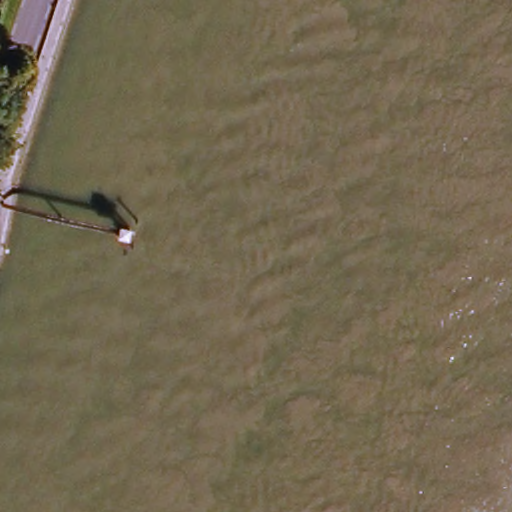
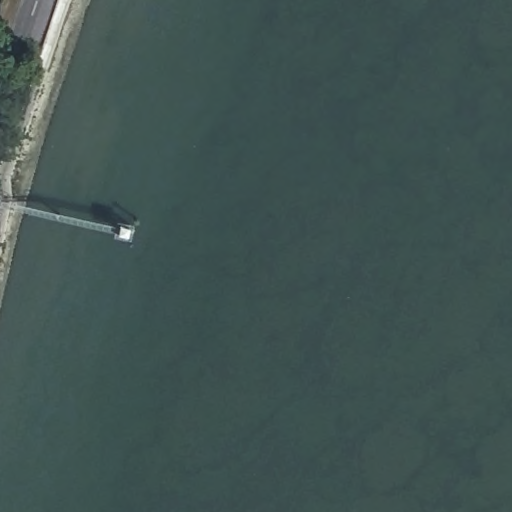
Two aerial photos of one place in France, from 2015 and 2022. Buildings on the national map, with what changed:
unchanged [(118,207),(142,210),(135,242),(107,235),(114,216),(118,207)]

